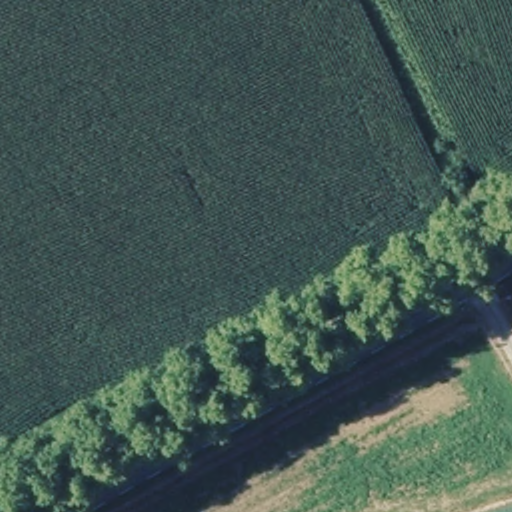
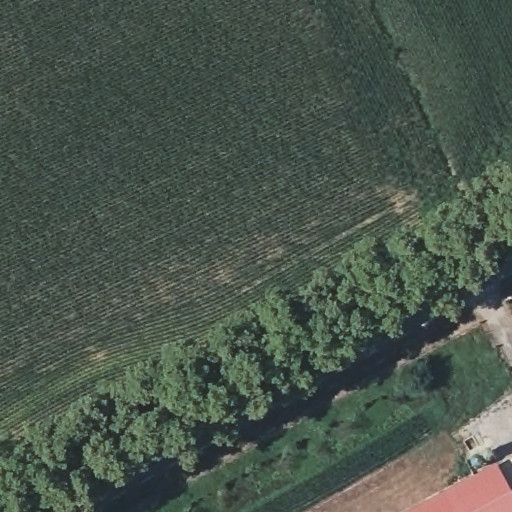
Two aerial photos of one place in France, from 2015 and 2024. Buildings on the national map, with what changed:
new [(512,512),(412,512),(496,466),(512,496),(512,512)]
demolished [(512,512),(480,512),(512,502),(512,512)]

